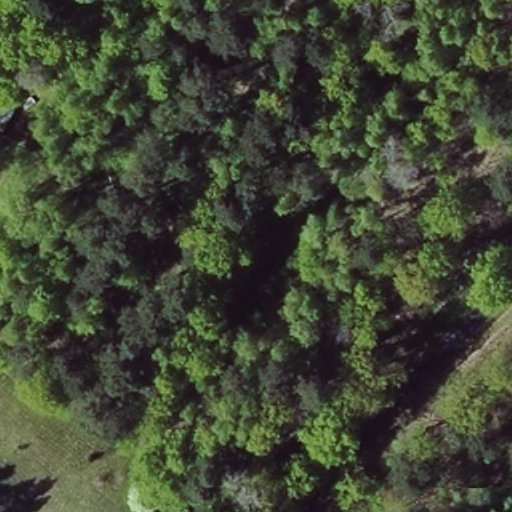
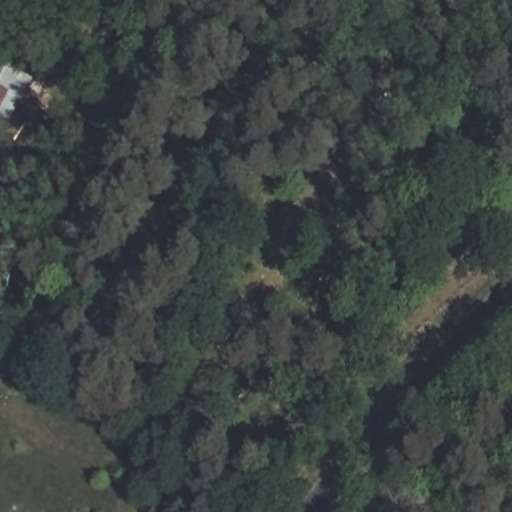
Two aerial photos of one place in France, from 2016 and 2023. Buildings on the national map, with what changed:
unchanged [(18,96),(1,140),(0,139),(0,88),(18,96)]

